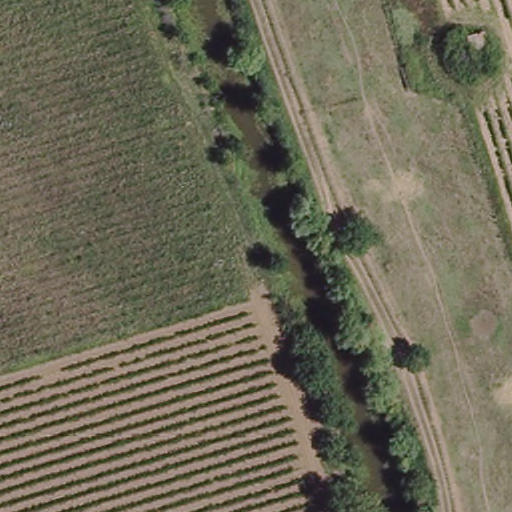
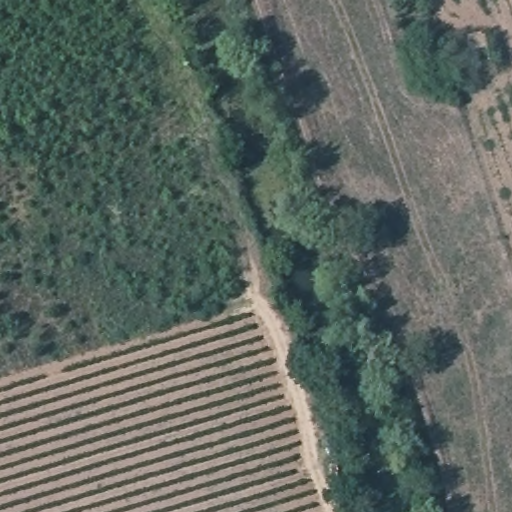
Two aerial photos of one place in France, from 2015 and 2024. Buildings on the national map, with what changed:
unchanged [(489,56),(477,60),(471,61),(470,59),(464,34),(481,28),(489,53),(489,56)]

